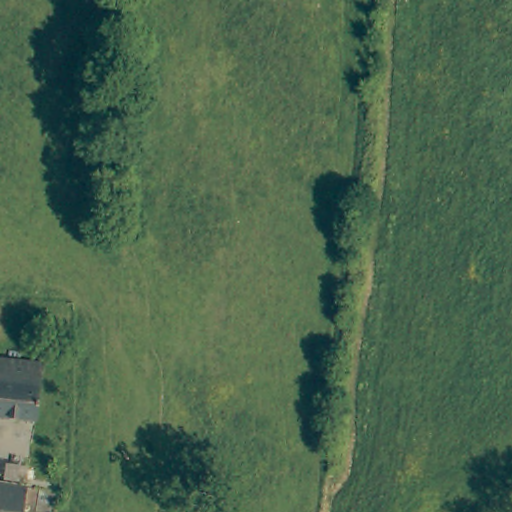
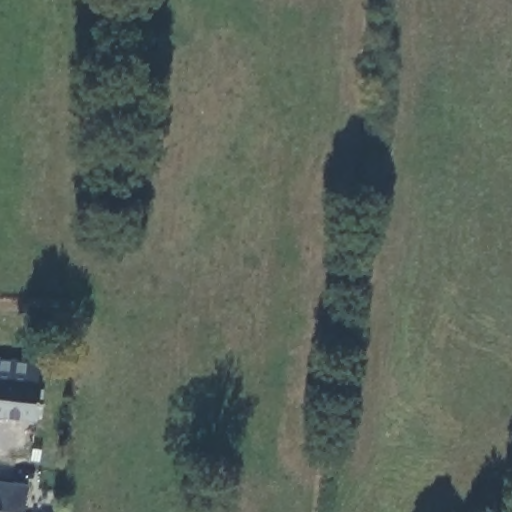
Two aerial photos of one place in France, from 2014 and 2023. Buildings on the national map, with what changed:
unchanged [(42,364),(35,421),(0,417),(0,360),(42,364)]
unchanged [(21,484),(17,512),(0,512),(0,480),(21,484)]

